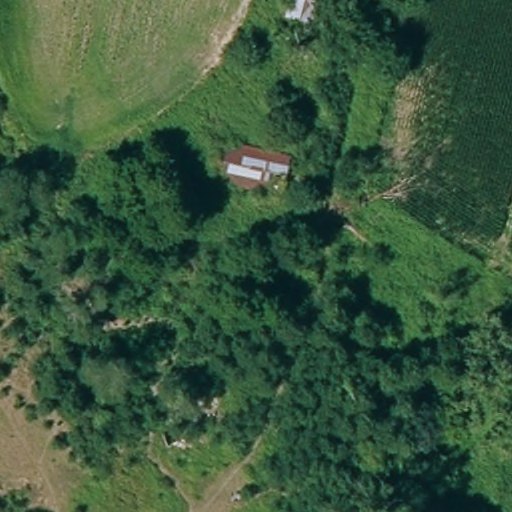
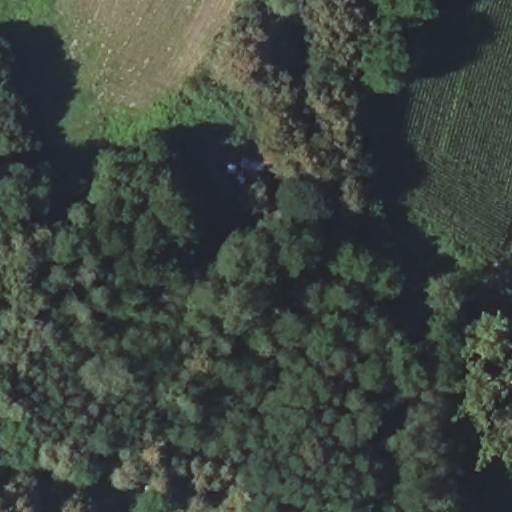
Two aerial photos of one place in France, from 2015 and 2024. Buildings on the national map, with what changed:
unchanged [(292,0),(324,0),(318,25),(289,17),(292,0)]
unchanged [(220,140),(298,155),(286,197),(212,181),(220,140)]

